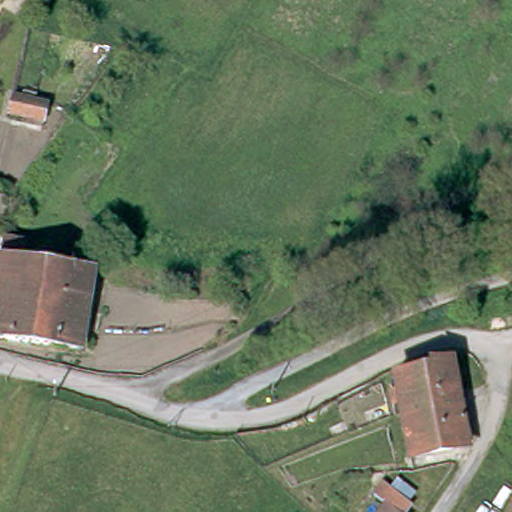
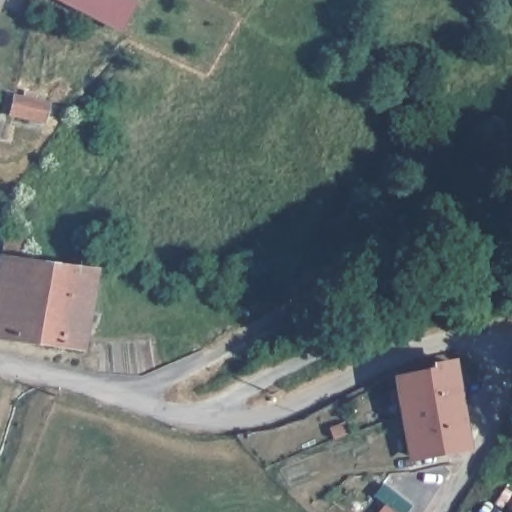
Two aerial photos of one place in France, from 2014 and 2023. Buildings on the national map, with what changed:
new [(135,2),(120,32),(57,0),(130,0),(135,2)]
unchanged [(38,120),(7,110),(11,94),(42,104),(38,120)]
unchanged [(92,267),(82,343),(0,332),(0,257),(1,250),(92,267)]
unchanged [(411,453),(392,373),(426,368),(425,363),(449,359),(467,440),(411,453)]
unchanged [(368,492),(376,480),(405,499),(398,512),(372,512),(379,500),(368,492)]

